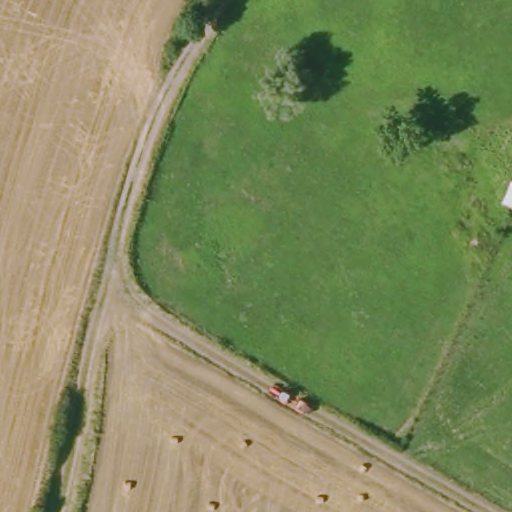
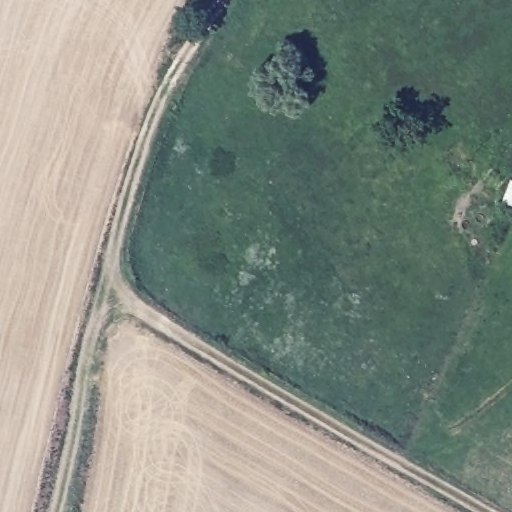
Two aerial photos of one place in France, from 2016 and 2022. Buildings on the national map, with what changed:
unchanged [(498,201),(509,177),(512,179),(512,207),(498,201)]

